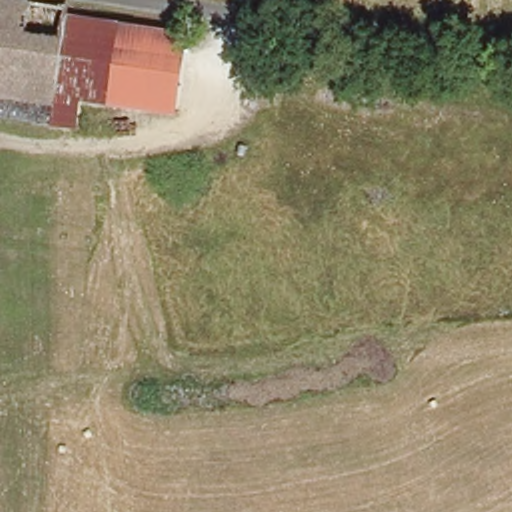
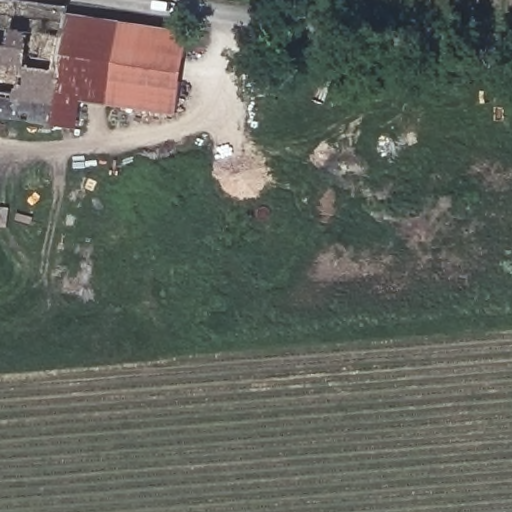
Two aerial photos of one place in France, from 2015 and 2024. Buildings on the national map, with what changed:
unchanged [(0,117),(0,0),(23,0),(69,7),(68,16),(51,125),(0,117)]
unchanged [(81,99),(76,128),(61,126),(51,125),(68,16),(121,24),(109,103),(81,99)]
unchanged [(133,108),(109,103),(121,24),(147,29),(133,108)]
unchanged [(187,36),(175,115),(133,108),(147,29),(187,36)]

